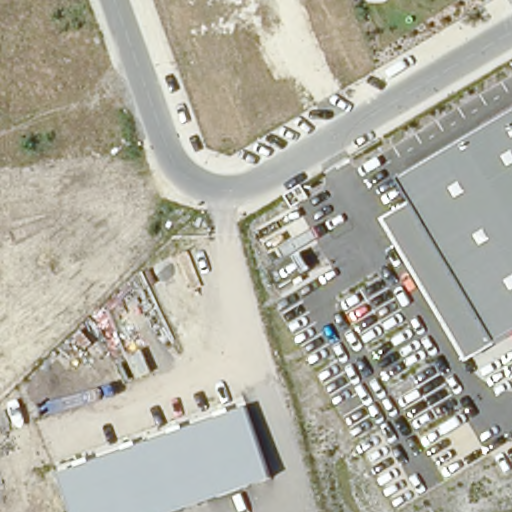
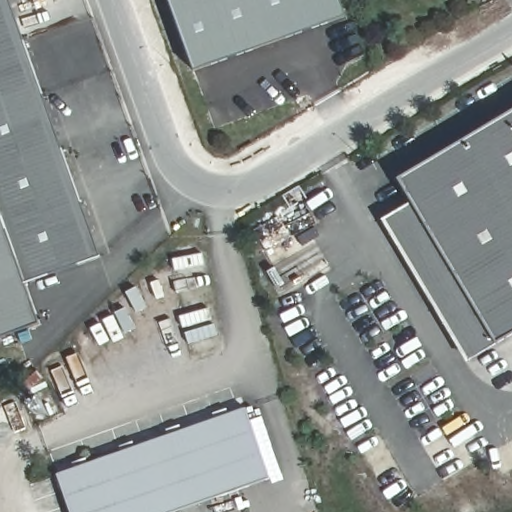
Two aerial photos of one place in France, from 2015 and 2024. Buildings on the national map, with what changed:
new [(25,282),(0,210),(0,0),(9,0),(100,257),(25,282)]
new [(195,69),(169,0),(339,0),(345,16),(195,69)]
unchanged [(497,342),(494,343),(468,360),(383,219),(410,202),(412,202),(399,179),(512,112),(512,333),(497,342)]
new [(38,323),(0,337),(0,211),(25,282),(38,323)]
unchanged [(270,479),(175,512),(73,512),(59,470),(245,407),(270,479)]

